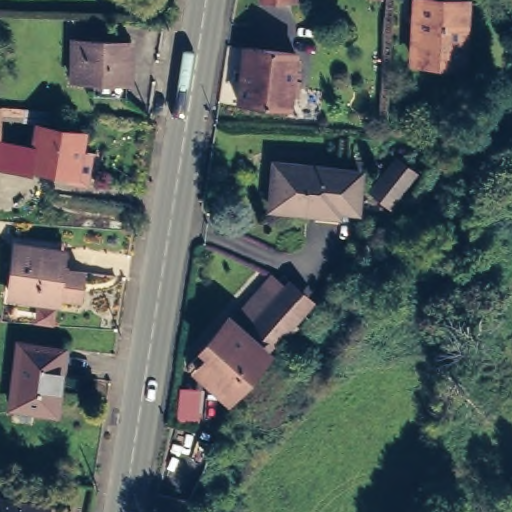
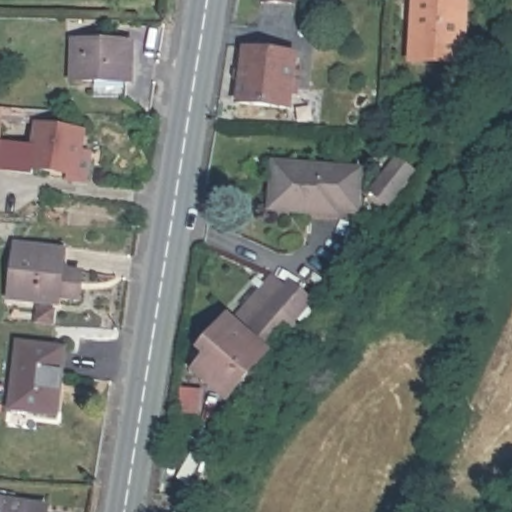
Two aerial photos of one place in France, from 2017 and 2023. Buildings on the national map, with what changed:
unchanged [(267,4),(268,0),(299,0),(299,6),(267,4)]
unchanged [(414,61),(417,0),(466,4),(462,63),(414,61)]
unchanged [(109,91),(110,83),(70,81),(72,41),(131,43),(130,84),(124,84),(123,92),(109,91)]
unchanged [(295,51),(294,70),(300,70),(299,93),(292,93),(289,106),(239,100),(242,76),(234,75),(234,66),(242,68),(245,45),(295,51)]
unchanged [(30,121),(10,120),(9,138),(0,137),(0,107),(31,110),(30,121)]
unchanged [(92,133),(89,151),(97,151),(96,157),(101,158),(98,184),(74,181),(75,177),(40,171),(40,175),(10,170),(14,144),(35,148),(36,139),(44,140),(47,125),(92,133)]
unchanged [(317,209),(281,205),(285,160),(370,168),(365,206),(349,204),(347,212),(317,209)]
unchanged [(14,304),(20,252),(67,257),(65,277),(89,280),(86,306),(70,304),(70,295),(63,295),(62,308),(14,304)]
unchanged [(232,313),(268,273),(321,303),(280,354),(230,408),(187,371),(232,313)]
unchanged [(55,413),(10,407),(19,347),(62,352),(55,413)]
unchanged [(44,512),(0,512),(0,502),(45,510),(44,512)]

